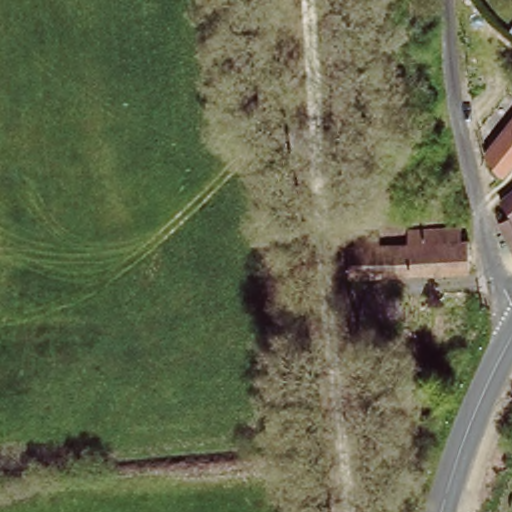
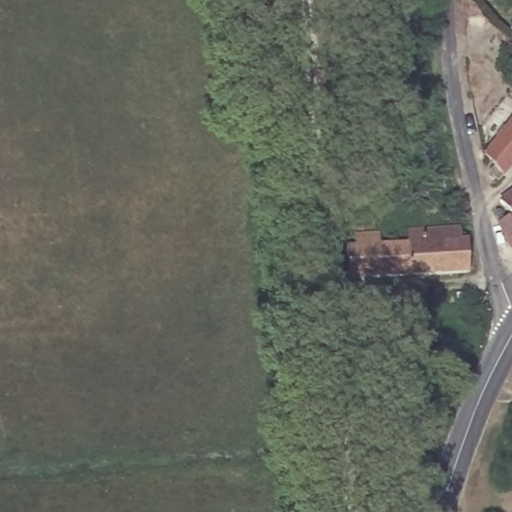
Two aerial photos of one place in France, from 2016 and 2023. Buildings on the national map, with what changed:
unchanged [(495,166),(498,161),(486,151),(512,119),(512,164),(505,174),(495,166)]
unchanged [(512,247),(500,223),(511,216),(502,201),(500,199),(510,192),(512,190),(512,247)]
unchanged [(463,236),(471,272),(399,280),(396,241),(463,236)]
unchanged [(399,280),(337,285),(334,242),(396,241),(399,280)]

